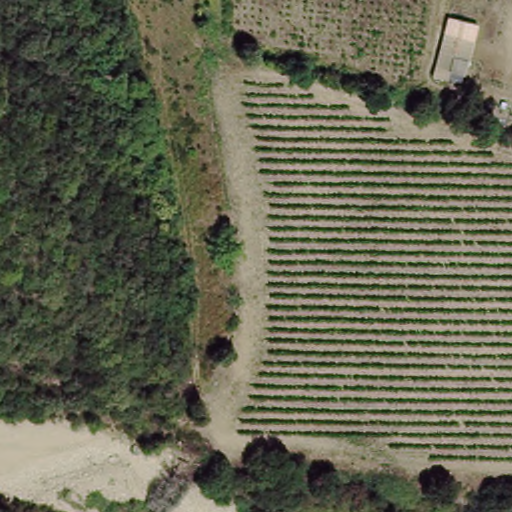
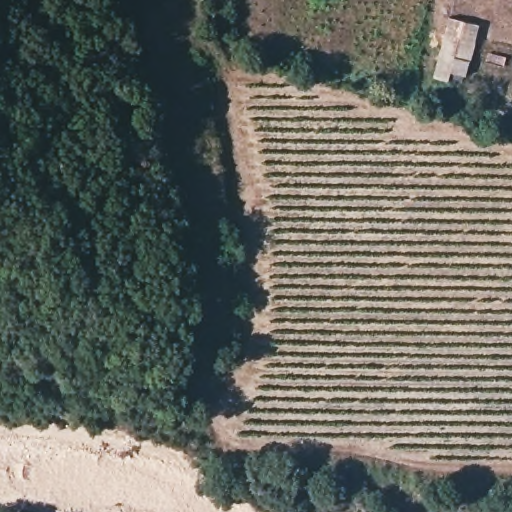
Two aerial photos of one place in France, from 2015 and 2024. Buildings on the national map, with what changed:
unchanged [(440,32),(475,41),(464,78),(447,75),(444,83),(429,79),(440,32)]

